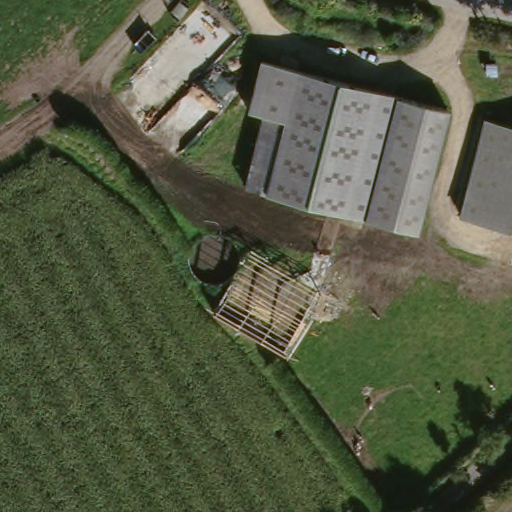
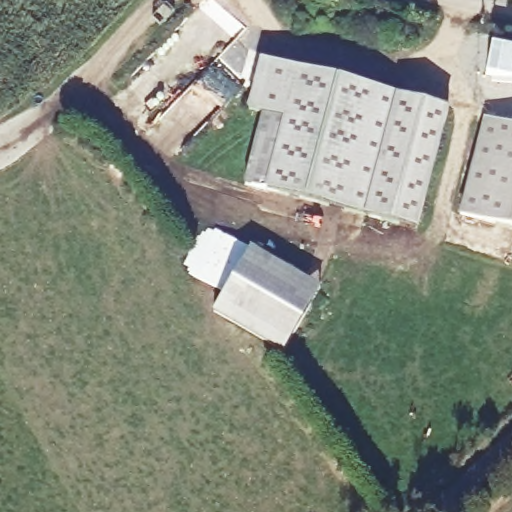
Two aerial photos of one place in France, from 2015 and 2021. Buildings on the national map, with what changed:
unchanged [(369,220),(246,190),(262,124),(244,116),(259,61),(400,97),(369,220)]
unchanged [(451,110),(418,233),(369,220),(400,97),(451,110)]
unchanged [(512,227),(461,214),(484,117),(512,124),(512,227)]
new [(224,294),(186,274),(212,229),(251,249),(321,289),(284,354),(213,313),(224,294)]

